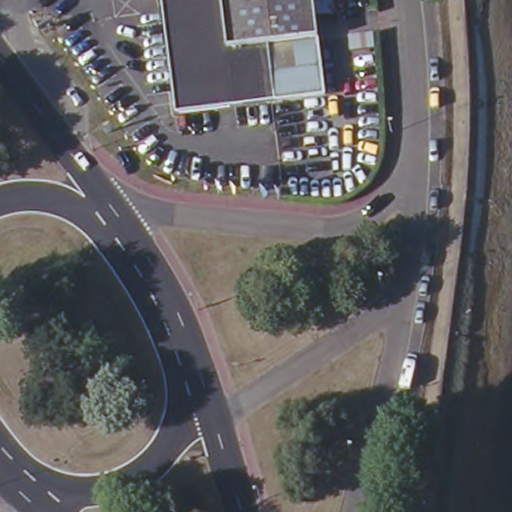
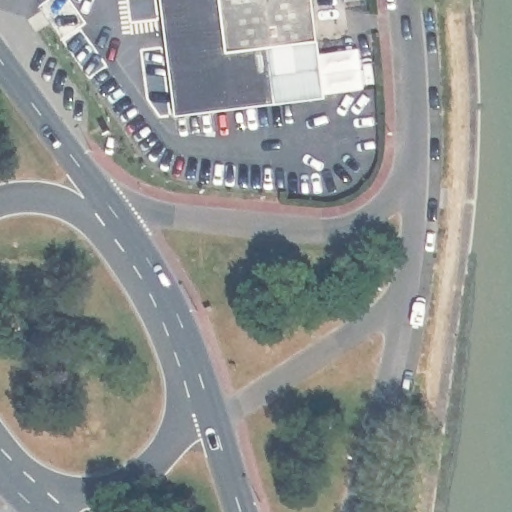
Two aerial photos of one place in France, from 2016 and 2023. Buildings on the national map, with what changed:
unchanged [(335,14),(314,17),(323,93),(173,110),(161,7),(156,7),(155,0),(334,0),(335,14)]

